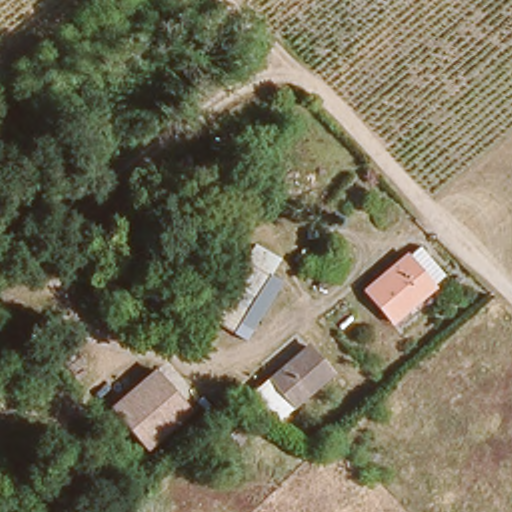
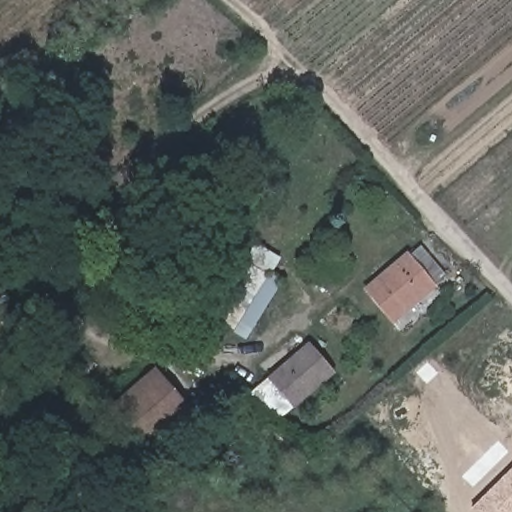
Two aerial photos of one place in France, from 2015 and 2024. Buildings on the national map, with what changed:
unchanged [(208,317),(254,243),(280,259),(271,274),(282,280),(245,339),(208,317)]
unchanged [(439,277),(395,314),(370,283),(413,247),(439,277)]
unchanged [(336,370),(296,403),(273,375),(312,342),(336,370)]
unchanged [(155,370),(188,408),(143,448),(110,409),(155,370)]
new [(512,467),(512,512),(473,512),(470,509),(512,467)]

